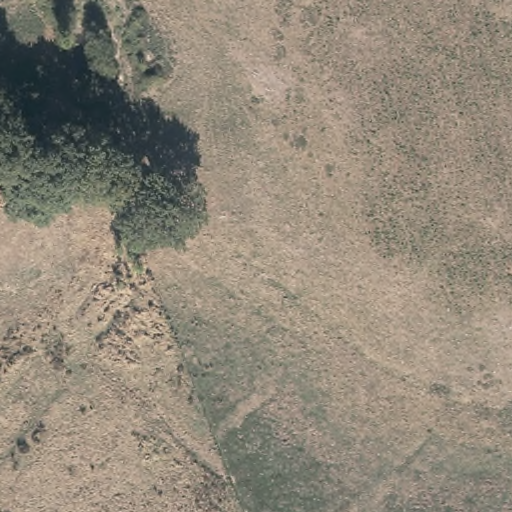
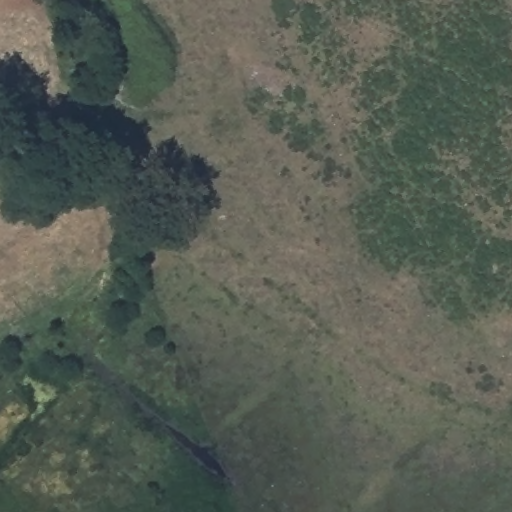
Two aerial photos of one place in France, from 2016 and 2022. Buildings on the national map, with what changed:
[]

